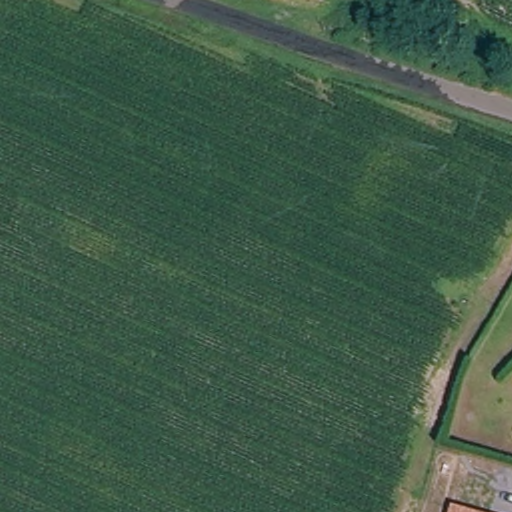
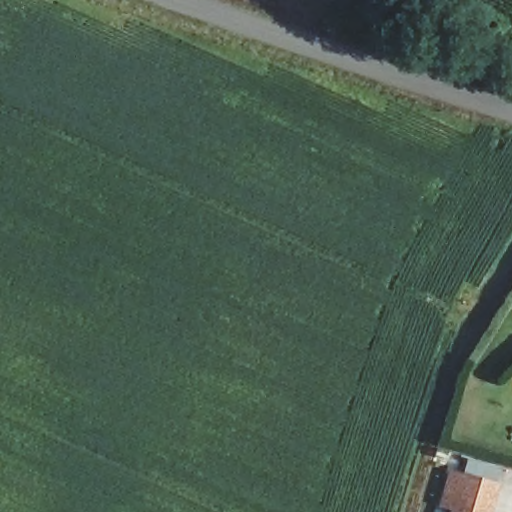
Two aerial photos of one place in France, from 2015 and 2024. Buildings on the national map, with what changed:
new [(451,468),(501,483),(492,512),(478,512),(451,504),(450,509),(440,506),(451,468)]
unchanged [(478,512),(449,512),(451,504),(478,512)]

